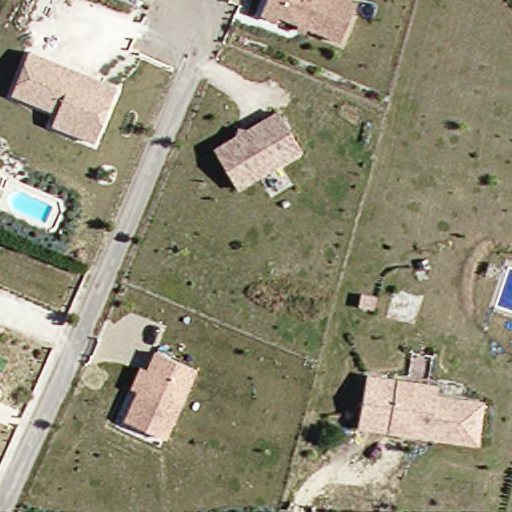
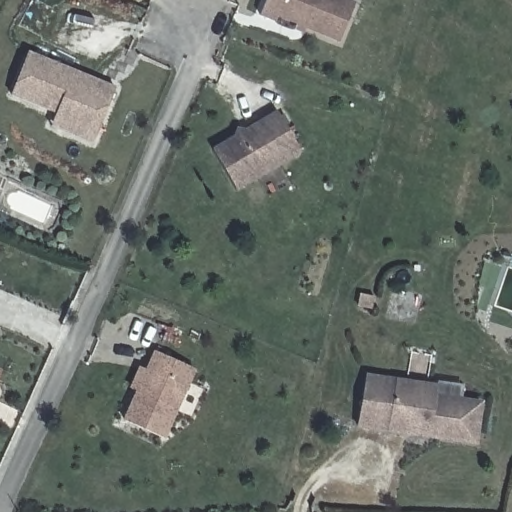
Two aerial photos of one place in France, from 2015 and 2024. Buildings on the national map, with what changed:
unchanged [(276,19),(275,24),(259,18),(266,0),(340,0),(354,5),(338,44),(276,19)]
unchanged [(49,129),(52,122),(54,117),(10,99),(27,54),(114,90),(99,125),(90,146),(49,129)]
unchanged [(276,118),(300,155),(236,194),(213,156),(276,118)]
unchanged [(191,369),(161,438),(122,421),(152,352),(191,369)]
unchanged [(395,436),(357,431),(363,381),(406,386),(436,389),(435,400),(480,406),(476,446),(428,440),(406,437),(395,436)]

